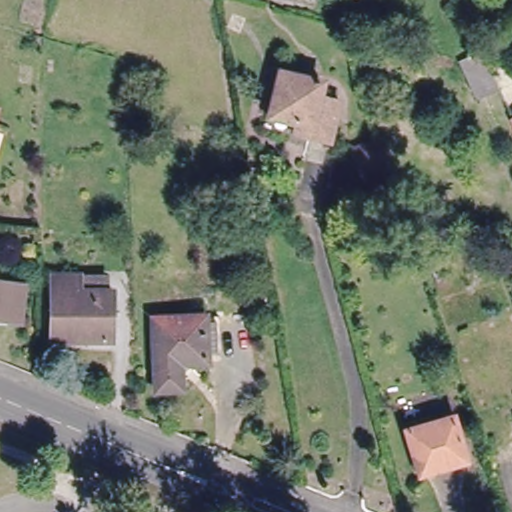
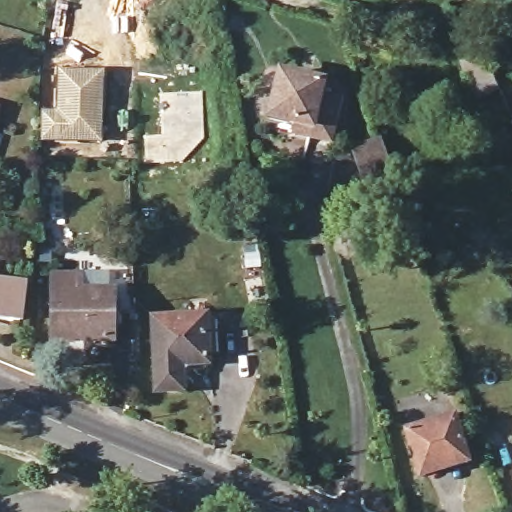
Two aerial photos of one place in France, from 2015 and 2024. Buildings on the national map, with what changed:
unchanged [(512,74),(512,118),(507,107),(482,53),(498,45),(512,74)]
unchanged [(482,53),(507,107),(493,113),(482,92),(472,96),(459,64),(482,53)]
new [(40,108),(52,109),(55,66),(105,69),(101,143),(40,142),(40,108)]
unchanged [(277,67),(319,77),(317,88),(335,92),(325,134),(303,129),(305,119),(269,111),(272,92),(277,67)]
new [(160,134),(159,92),(202,90),(205,138),(181,163),(143,163),(142,134),(160,134)]
new [(390,171),(400,199),(373,208),(364,179),(390,171)]
unchanged [(55,272),(83,272),(83,289),(115,290),(115,339),(55,338),(55,272)]
unchanged [(27,285),(23,320),(0,317),(0,281),(27,285)]
unchanged [(176,362),(177,381),(154,382),(150,313),(200,311),(213,310),(215,355),(201,355),(181,356),(176,362)]
unchanged [(471,458),(424,471),(411,427),(459,413),(471,458)]

